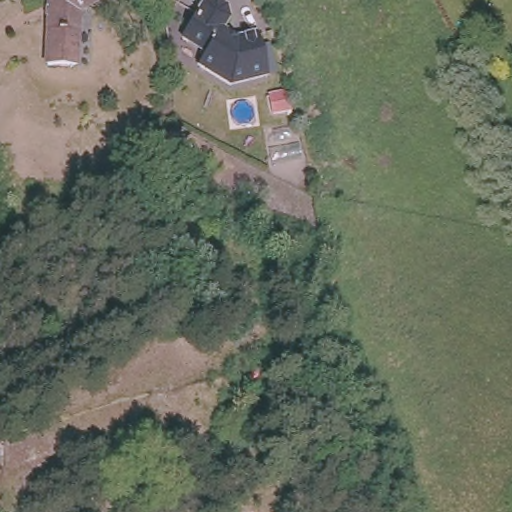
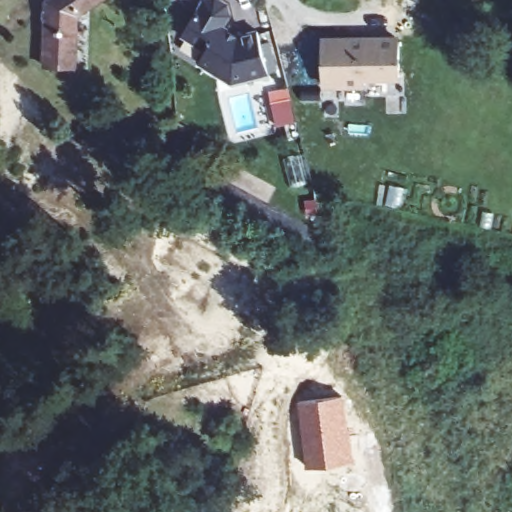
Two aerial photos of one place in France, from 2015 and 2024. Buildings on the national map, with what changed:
unchanged [(46,62),(48,0),(86,0),(75,7),(72,64),(46,62)]
unchanged [(235,35),(257,30),(261,43),(269,41),(277,71),(268,74),(230,84),(197,64),(205,52),(180,36),(196,10),(202,0),(221,0),(228,4),(232,17),(225,27),(235,35)]
new [(320,41),(396,39),(397,75),(364,76),(364,83),(322,85),(320,41)]
new [(270,93),(285,90),(290,124),(275,127),(270,93)]
new [(354,460),(307,469),(297,402),(344,395),(354,460)]

